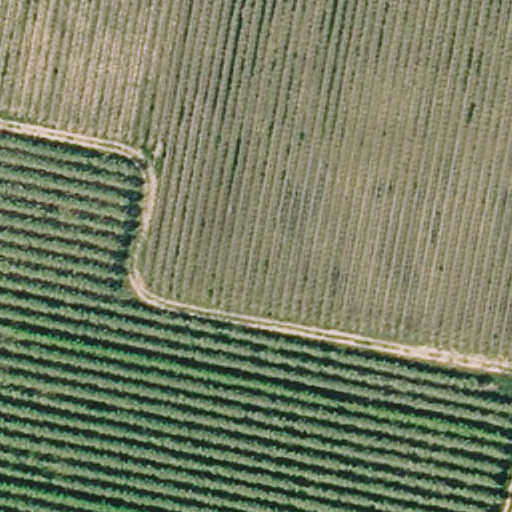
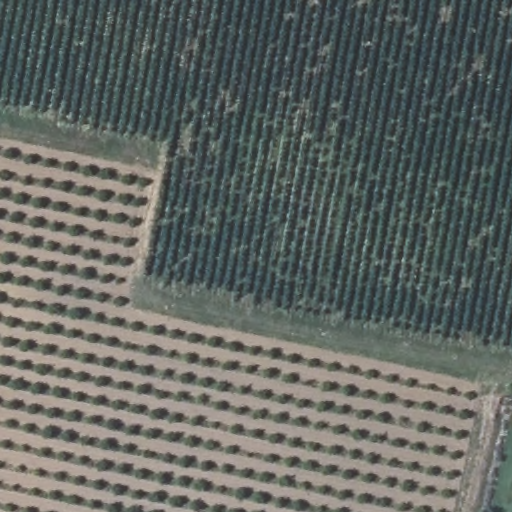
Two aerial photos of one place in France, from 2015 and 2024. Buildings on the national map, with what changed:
[]

